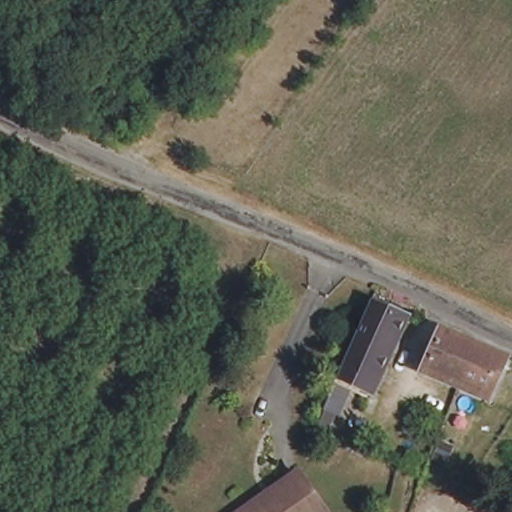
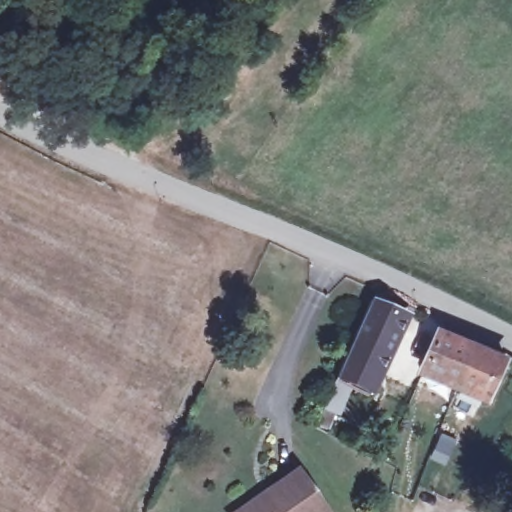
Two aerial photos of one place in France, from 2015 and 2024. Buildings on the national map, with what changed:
unchanged [(335,401),(338,391),(332,388),(335,383),(340,383),(371,312),(370,312),(377,293),(412,309),(374,408),(353,398),(350,407),(335,401)]
unchanged [(424,377),(440,334),(473,347),(502,358),(487,412),(455,395),(424,377)]
unchanged [(324,512),(236,512),(297,472),(325,511),(324,512)]

